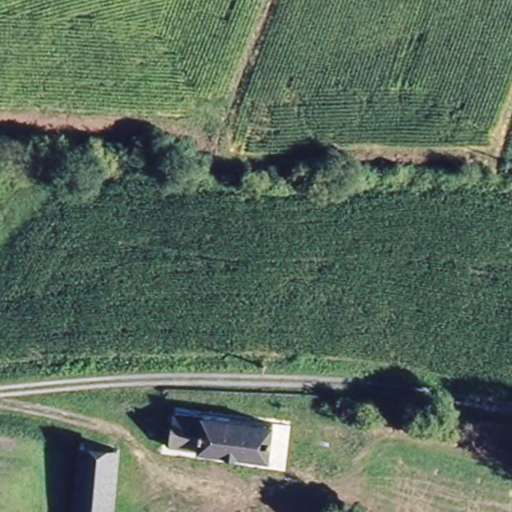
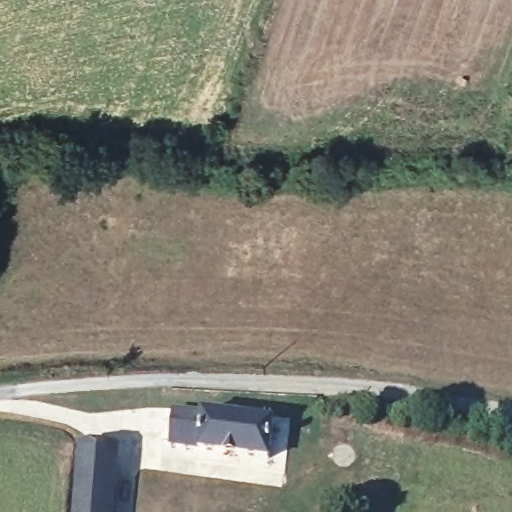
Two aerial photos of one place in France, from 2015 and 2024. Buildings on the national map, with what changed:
unchanged [(280,427),(273,464),(174,446),(181,409),(203,413),(280,427)]
unchanged [(121,452),(116,512),(79,512),(85,448),(121,452)]

